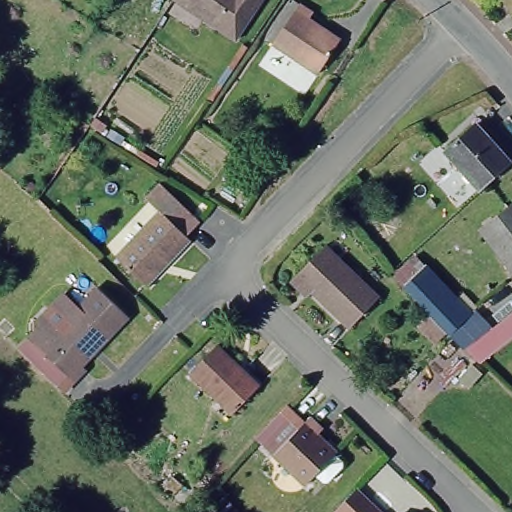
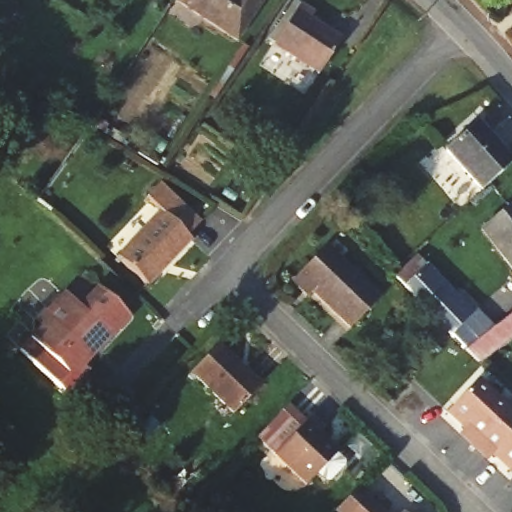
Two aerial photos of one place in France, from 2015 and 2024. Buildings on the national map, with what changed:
unchanged [(179,0),(256,0),(233,35),(179,0)]
unchanged [(312,13),(307,20),(340,42),(319,74),(272,44),(265,40),(289,3),(296,8),(298,4),(312,13)]
unchanged [(472,120),(508,156),(479,184),(443,148),(472,120)]
unchanged [(142,193),(154,180),(194,219),(182,231),(185,235),(142,280),(110,250),(155,206),(142,193)]
unchanged [(470,227),(503,199),(512,209),(512,269),(508,272),(470,227)]
unchanged [(293,273),(327,241),(380,295),(352,323),(312,282),(305,288),(293,273)]
unchanged [(398,282),(389,271),(413,249),(467,307),(472,302),(490,320),(460,347),(398,282)]
unchanged [(126,315),(79,361),(84,366),(71,378),(37,344),(94,285),(126,315)]
unchanged [(490,320),(493,328),(512,313),(512,340),(480,364),(460,347),(490,320)]
unchanged [(218,340),(260,381),(233,409),(190,368),(218,340)]
new [(477,377),(508,406),(474,443),(460,429),(465,424),(447,408),(477,377)]
new [(512,410),(512,465),(510,467),(493,450),(488,456),(474,443),(508,406),(512,410)]
unchanged [(322,424),(317,428),(335,446),(302,478),(271,447),(307,410),(322,424)]
unchanged [(359,482),(390,512),(343,512),(337,505),(359,482)]
unchanged [(407,506),(413,512),(401,512),(407,506)]

